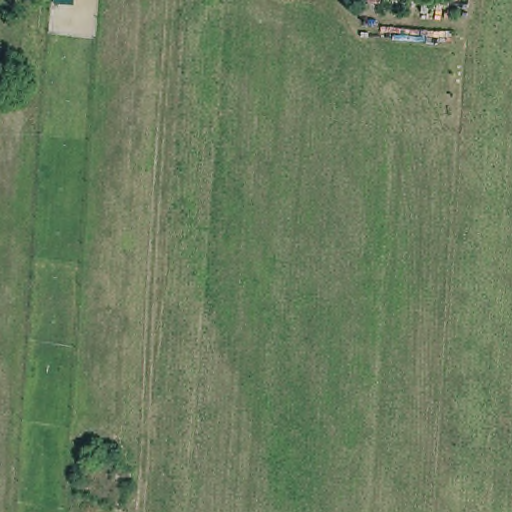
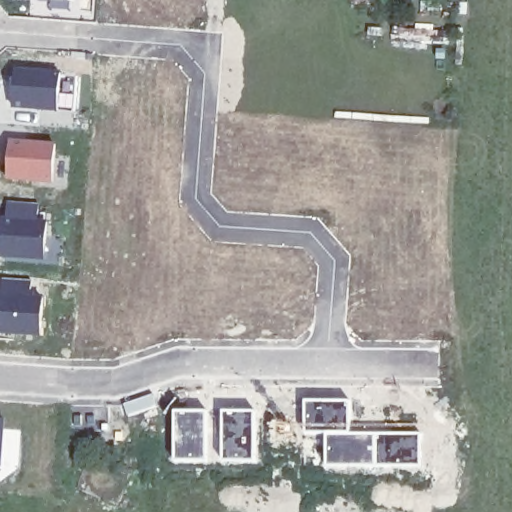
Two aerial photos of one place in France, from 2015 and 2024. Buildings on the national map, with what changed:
new [(37,0),(75,0),(75,3),(37,0)]
new [(11,65),(62,73),(60,91),(75,92),(73,110),(8,108),(11,65)]
new [(8,137),(55,141),(51,182),(6,179),(8,137)]
new [(39,203),(38,219),(45,220),(43,260),(0,259),(0,227),(6,200),(39,203)]
new [(30,293),(42,295),(38,336),(0,334),(0,277),(31,279),(30,293)]
new [(304,399),(351,399),(351,431),(421,432),(421,467),(324,468),(324,435),(304,435),(304,399)]
new [(172,409),(208,410),(210,464),(172,464),(172,409)]
new [(221,410),(255,410),(256,463),(220,463),(221,410)]
new [(0,467),(0,417),(5,417),(0,467)]

